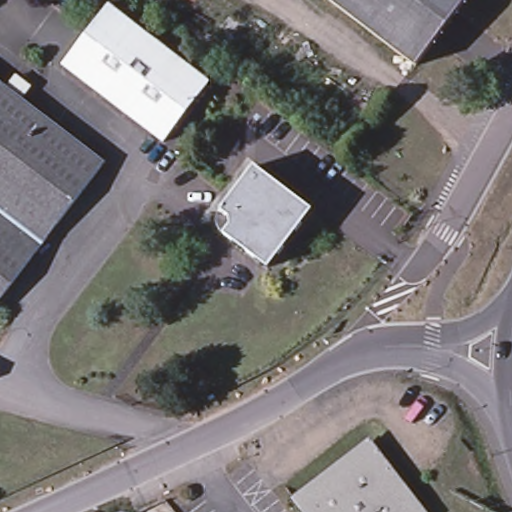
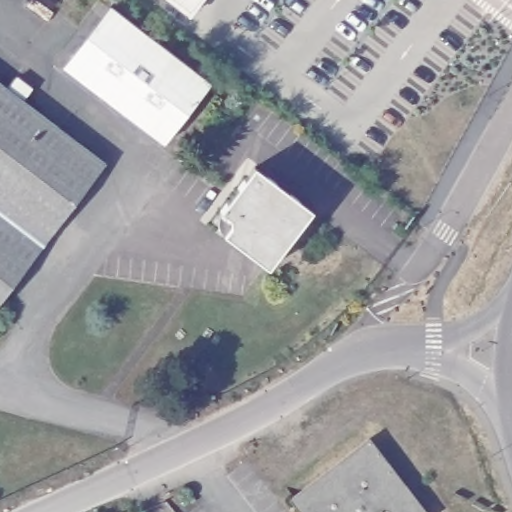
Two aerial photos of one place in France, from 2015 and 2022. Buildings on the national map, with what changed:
new [(190,16),(169,0),(202,0),(190,16)]
demolished [(410,75),(310,0),(467,0),(410,75)]
unchanged [(109,5),(211,82),(167,144),(62,69),(109,5)]
unchanged [(97,160),(98,161),(0,289),(0,85),(97,160)]
unchanged [(218,230),(217,228),(216,226),(215,224),(215,222),(215,220),(215,218),(215,216),(215,215),(217,213),(217,211),(218,210),(237,186),(252,166),(310,210),(295,230),(266,267),(222,233),(220,232),(218,230)]
unchanged [(370,442),(425,512),(312,512),(300,496),(370,442)]

